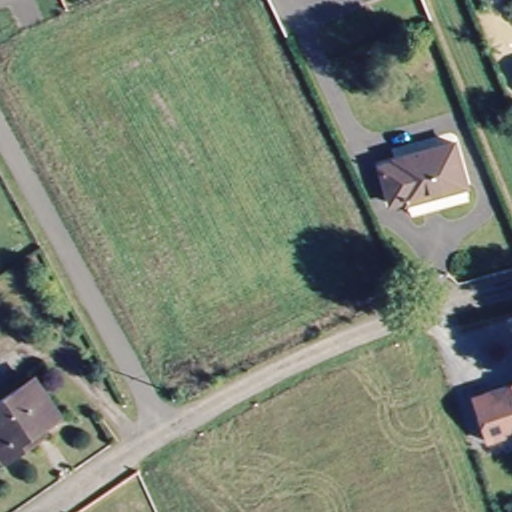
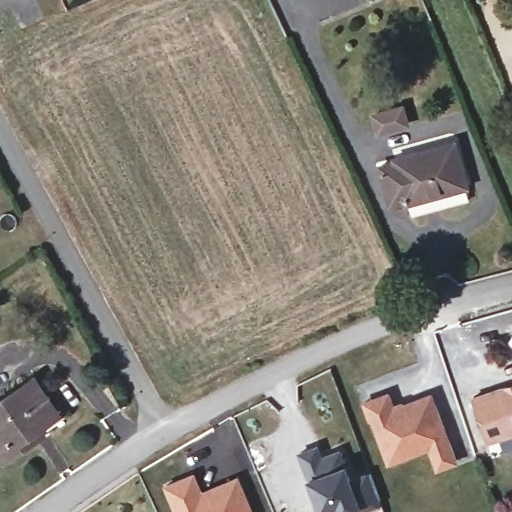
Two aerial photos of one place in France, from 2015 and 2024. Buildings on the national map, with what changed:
unchanged [(428,210),(413,213),(410,199),(390,202),(385,166),(403,163),(402,154),(460,143),(470,193),(471,202),(428,210)]
unchanged [(41,421),(46,428),(15,456),(0,439),(0,392),(28,368),(58,404),(41,421)]
unchanged [(472,399),(508,385),(512,389),(512,434),(490,443),(472,399)]
new [(366,422),(359,401),(388,390),(393,404),(402,400),(404,403),(430,392),(458,463),(435,472),(427,451),(386,464),(370,421),(366,422)]
new [(322,454),(341,448),(346,464),(351,477),(369,471),(380,504),(361,508),(351,512),(338,512),(336,507),(321,512),(308,479),(296,451),(317,443),(322,454)]
new [(164,489),(192,478),(200,497),(236,482),(249,512),(174,512),(164,489)]

